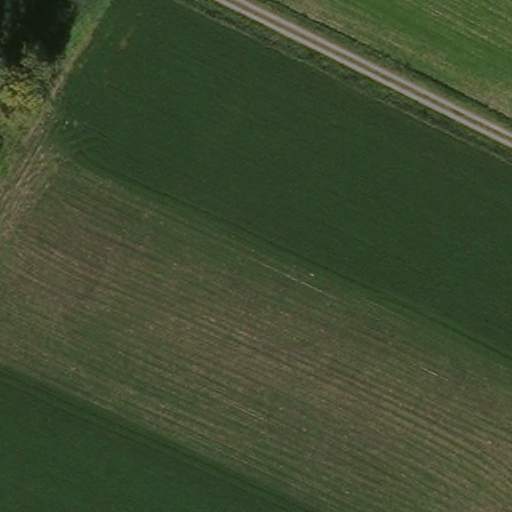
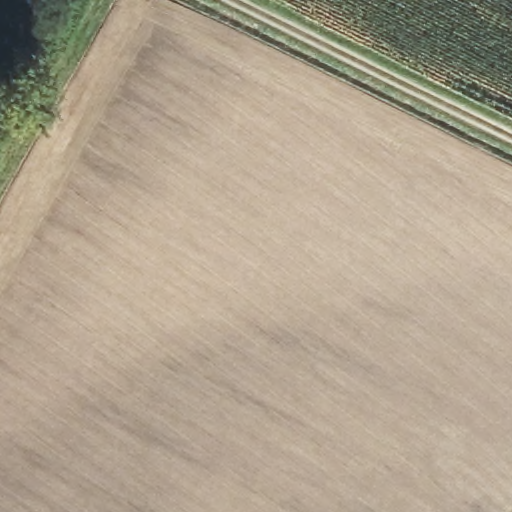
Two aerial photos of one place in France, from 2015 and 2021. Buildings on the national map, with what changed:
[]

